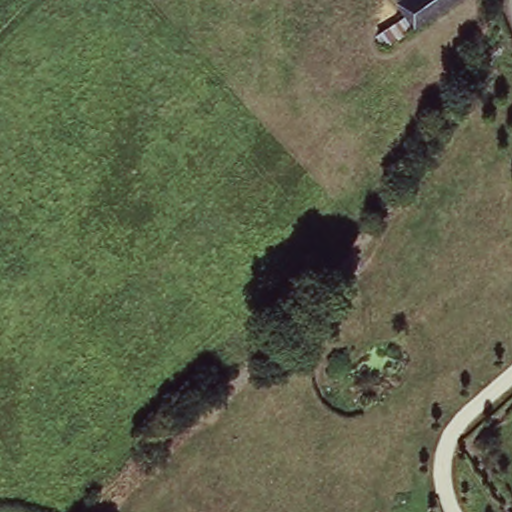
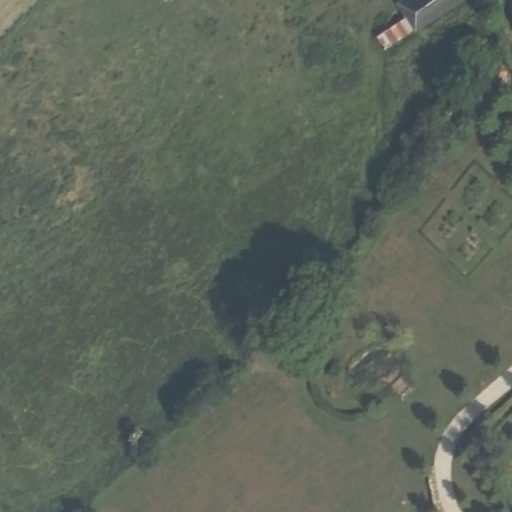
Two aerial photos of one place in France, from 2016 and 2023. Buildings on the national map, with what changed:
unchanged [(400,11),(415,0),(462,0),(418,35),(400,11)]
unchanged [(474,53),(459,91),(440,83),(459,47),(474,53)]

